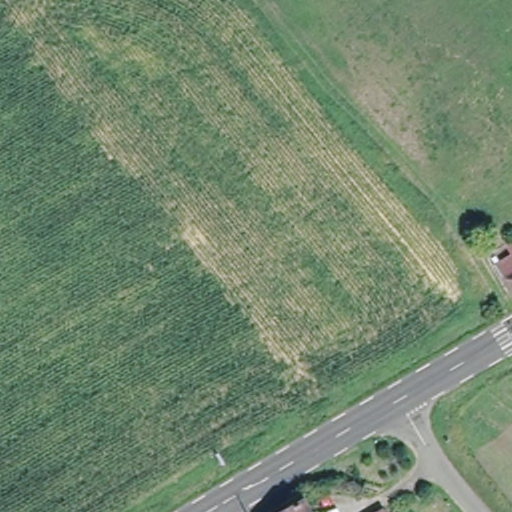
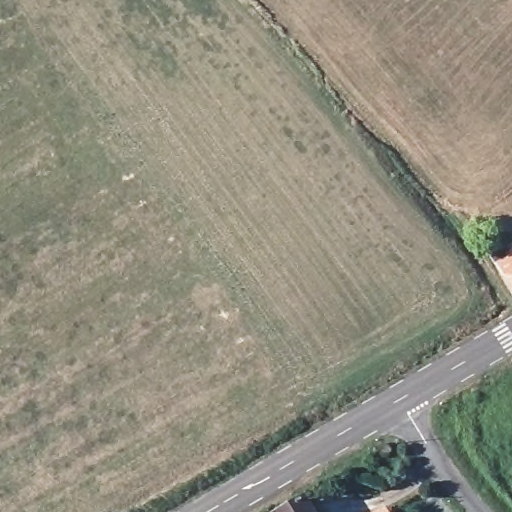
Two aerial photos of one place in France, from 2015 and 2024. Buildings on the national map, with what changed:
unchanged [(495,256),(510,245),(507,241),(512,239),(512,285),(495,256)]
unchanged [(313,512),(292,512),(309,504),(313,512)]
unchanged [(396,512),(390,512),(396,510),(396,512)]

